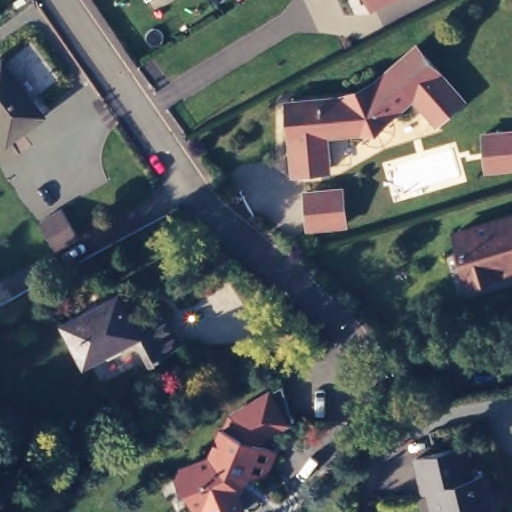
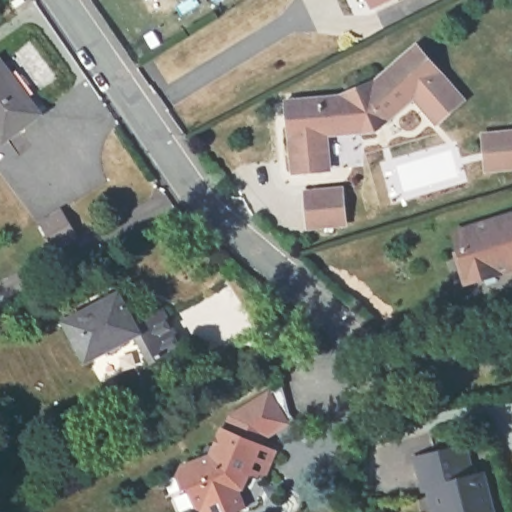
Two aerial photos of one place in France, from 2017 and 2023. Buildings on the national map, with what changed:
unchanged [(23,0),(23,1),(15,6),(11,2),(14,0),(23,0)]
unchanged [(367,0),(392,0),(371,10),(367,0)]
unchanged [(361,131),(326,134),(330,169),(295,173),(288,102),(358,96),(364,93),(416,46),(463,100),(436,123),(413,96),(387,120),(376,129),(361,131)]
unchanged [(0,123),(0,58),(4,55),(16,71),(20,77),(43,109),(8,134),(0,123)]
unchanged [(484,135),(512,132),(512,168),(487,170),(484,135)]
unchanged [(306,192),(341,189),(345,224),(310,227),(306,192)]
unchanged [(62,209),(80,237),(56,251),(39,223),(62,209)]
unchanged [(460,251),(455,233),(512,215),(512,268),(496,273),(470,281),(460,251)]
unchanged [(128,304),(134,301),(142,315),(162,305),(182,342),(150,358),(136,331),(85,358),(63,317),(120,287),(128,304)]
unchanged [(268,471),(253,470),(249,468),(242,485),(250,504),(230,512),(210,512),(207,506),(200,503),(192,483),(188,485),(181,470),(183,464),(216,451),(228,422),(230,423),(235,411),(287,379),(295,408),(300,413),(270,432),(267,439),(280,445),(268,471)]
unchanged [(473,473),(483,470),(493,512),(433,512),(425,481),(420,483),(412,458),(467,443),(473,473)]

